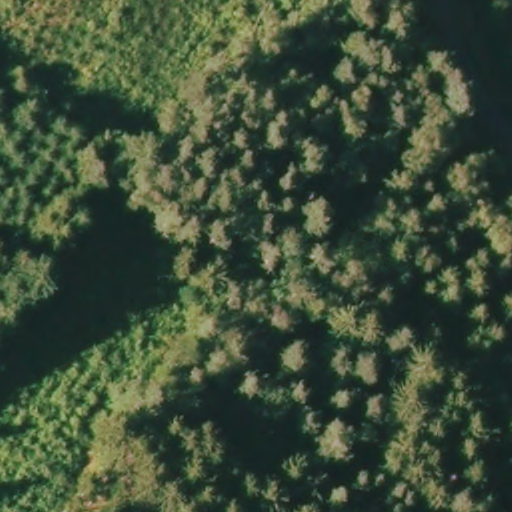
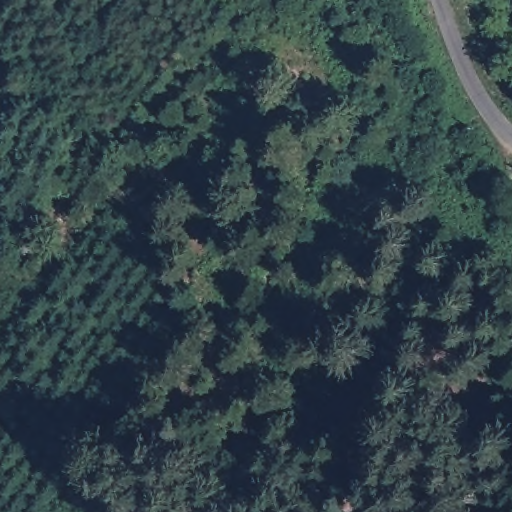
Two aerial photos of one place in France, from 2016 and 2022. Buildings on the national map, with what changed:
unchanged [(500,203),(507,192),(512,197),(512,211),(510,213),(500,203)]

